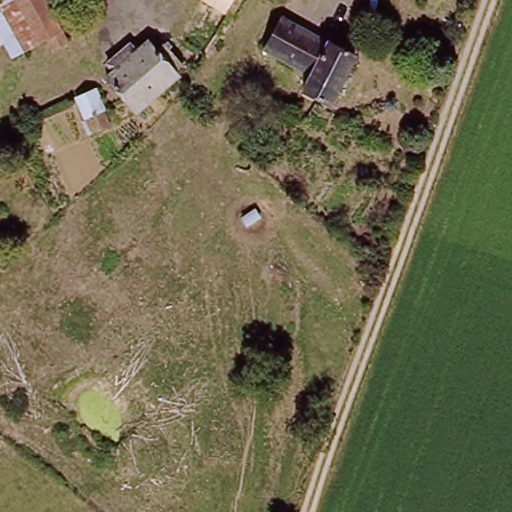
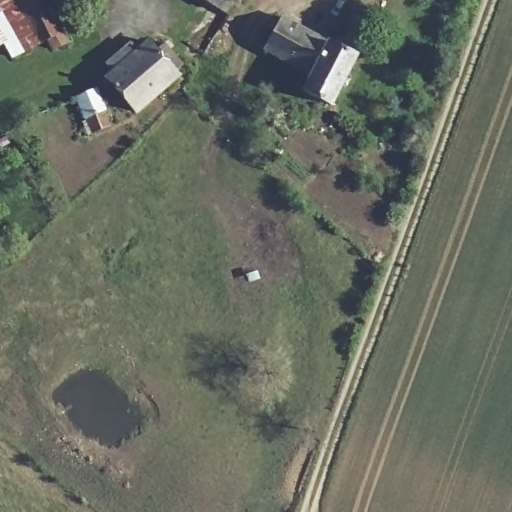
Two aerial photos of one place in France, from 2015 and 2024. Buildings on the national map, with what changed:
unchanged [(6,42),(0,31),(0,0),(48,0),(66,32),(18,62),(6,42)]
unchanged [(227,10),(211,0),(233,0),(227,10)]
unchanged [(335,105),(308,90),(317,74),(252,39),(260,21),(279,31),(289,15),(360,57),(335,105)]
unchanged [(0,31),(6,42),(0,45),(0,31)]
unchanged [(138,109),(108,76),(148,40),(177,74),(138,109)]
unchanged [(101,109),(108,122),(95,128),(76,96),(93,86),(105,107),(101,109)]

